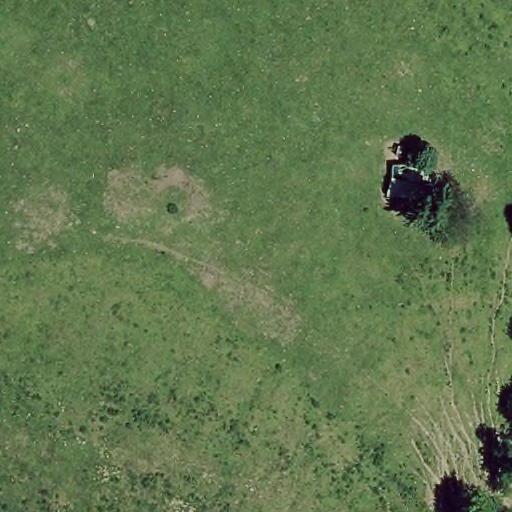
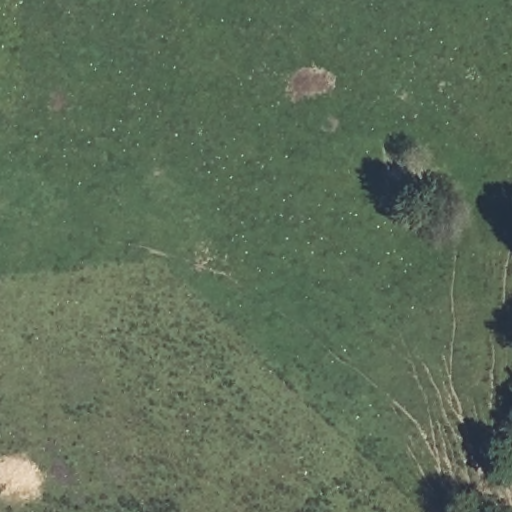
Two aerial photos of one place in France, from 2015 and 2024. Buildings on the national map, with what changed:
unchanged [(425,206),(383,202),(389,165),(430,172),(425,206)]

